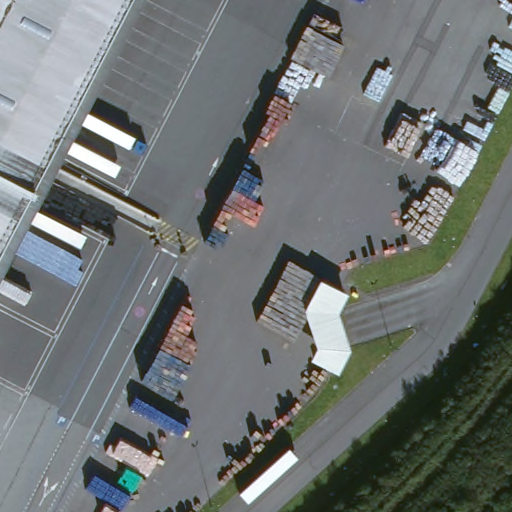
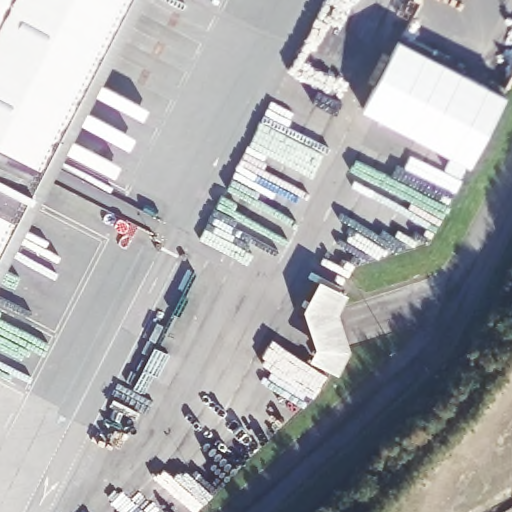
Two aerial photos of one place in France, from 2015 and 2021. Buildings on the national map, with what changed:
unchanged [(0,227),(0,0),(117,0),(0,227)]
new [(398,47),(506,103),(471,169),(364,114),(398,47)]

